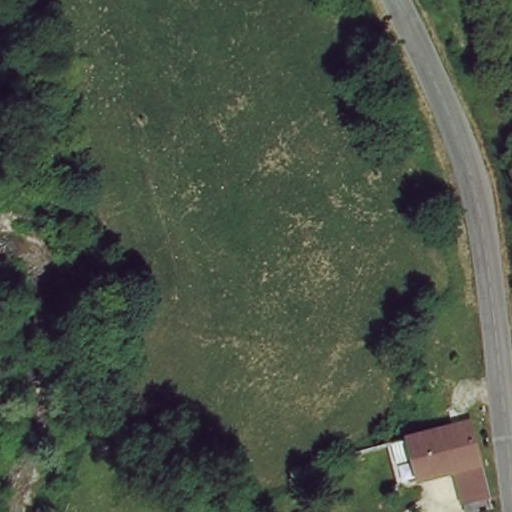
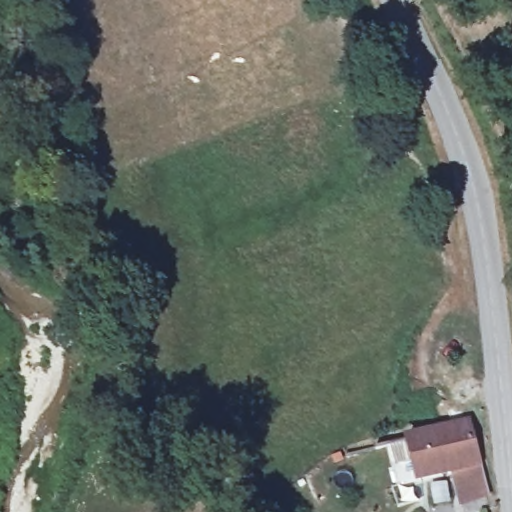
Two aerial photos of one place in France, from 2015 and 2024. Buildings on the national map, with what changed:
unchanged [(493,502),(462,511),(455,473),(454,465),(445,423),(467,417),(474,414),(493,502)]
unchanged [(454,465),(418,475),(409,433),(445,423),(454,465)]

